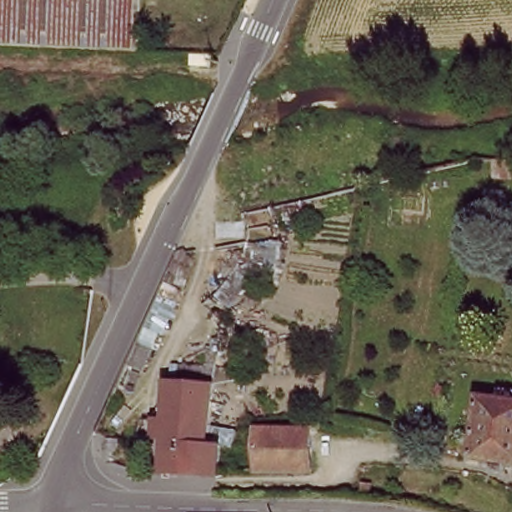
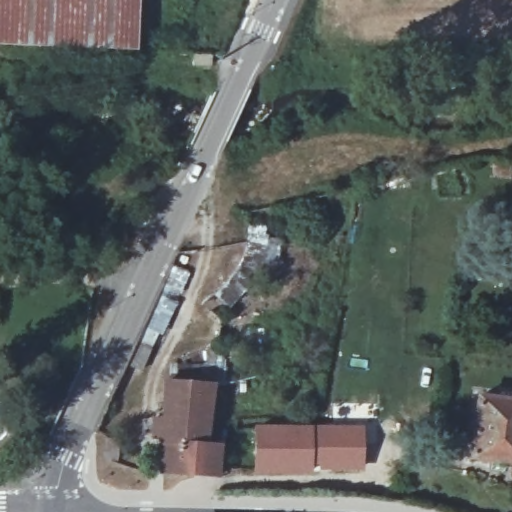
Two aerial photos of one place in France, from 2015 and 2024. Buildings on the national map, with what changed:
unchanged [(138,54),(0,47),(0,0),(139,0),(138,54)]
unchanged [(101,216),(102,205),(117,205),(115,217),(101,216)]
unchanged [(164,473),(164,383),(211,384),(206,443),(223,442),(221,476),(164,473)]
unchanged [(476,458),(484,395),(512,400),(512,463),(476,458)]
unchanged [(249,475),(253,430),(311,432),(309,475),(249,475)]
new [(311,432),(364,432),(366,470),(309,470),(311,432)]

